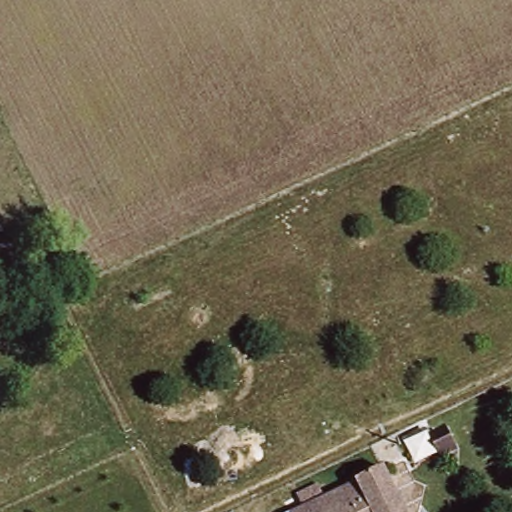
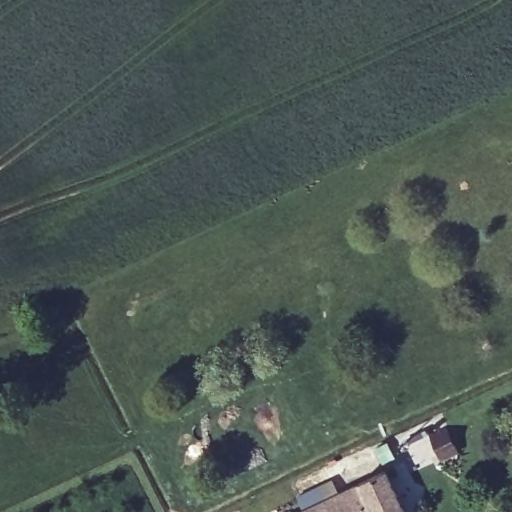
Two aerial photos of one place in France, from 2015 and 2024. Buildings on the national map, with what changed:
unchanged [(430,437),(450,427),(461,455),(441,463),(438,456),(416,466),(405,442),(427,432),(430,437)]
unchanged [(413,512),(308,512),(392,470),(413,512)]

